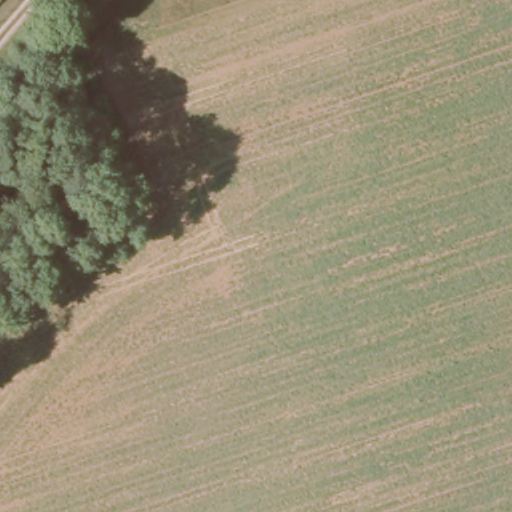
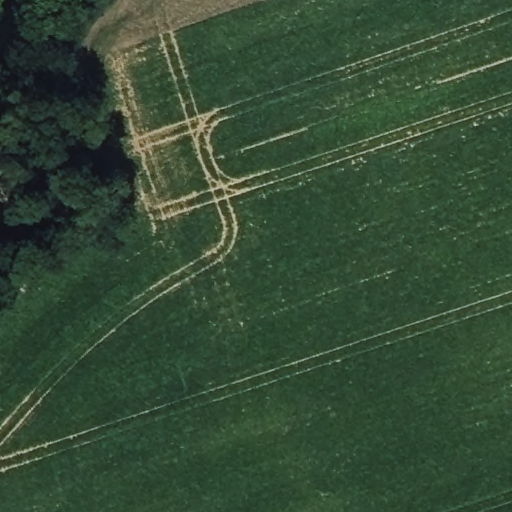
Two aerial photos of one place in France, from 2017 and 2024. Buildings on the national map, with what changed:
[]

